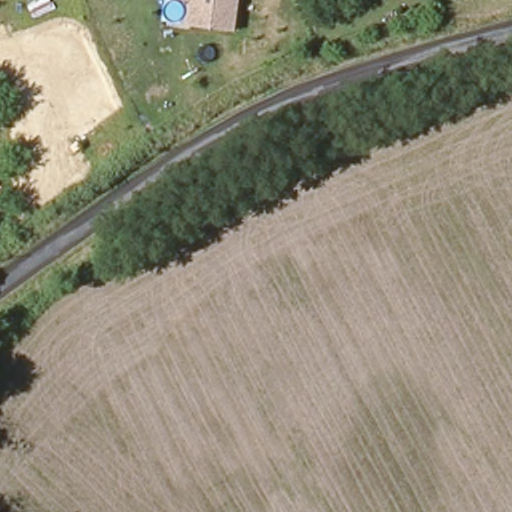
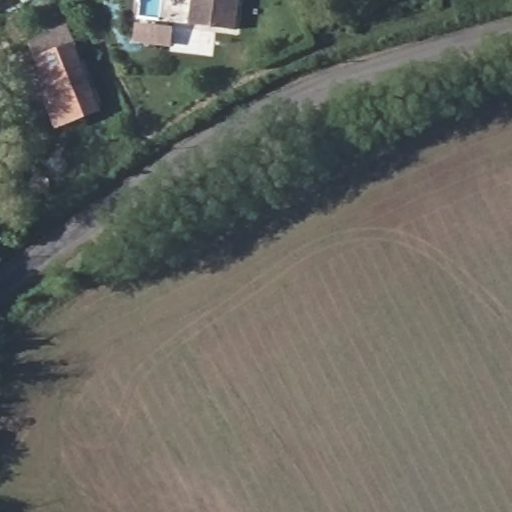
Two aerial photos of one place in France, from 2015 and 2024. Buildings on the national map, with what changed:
unchanged [(236,27),(187,20),(190,0),(240,0),(236,27)]
new [(60,131),(39,80),(47,77),(38,59),(76,44),(104,112),(60,131)]

